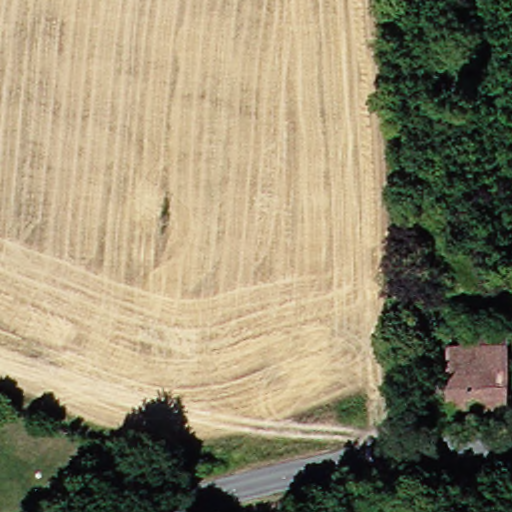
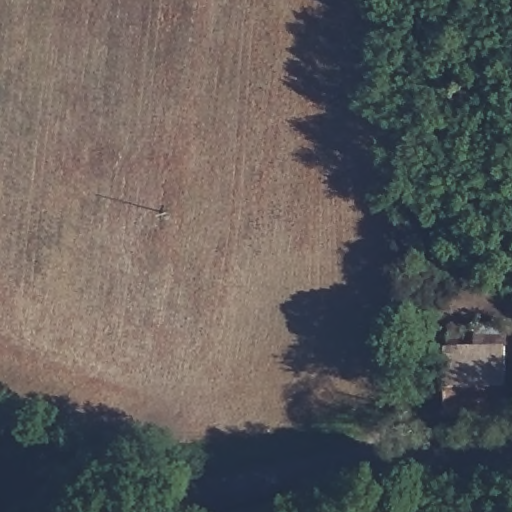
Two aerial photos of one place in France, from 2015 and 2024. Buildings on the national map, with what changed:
unchanged [(443,323),(504,325),(502,349),(442,347),(443,323)]
unchanged [(442,412),(441,397),(427,396),(428,369),(424,367),(424,347),(442,347),(502,349),(502,384),(512,385),(512,414),(442,412)]

